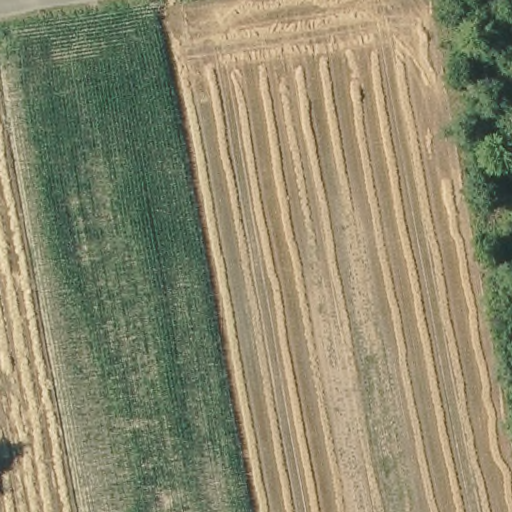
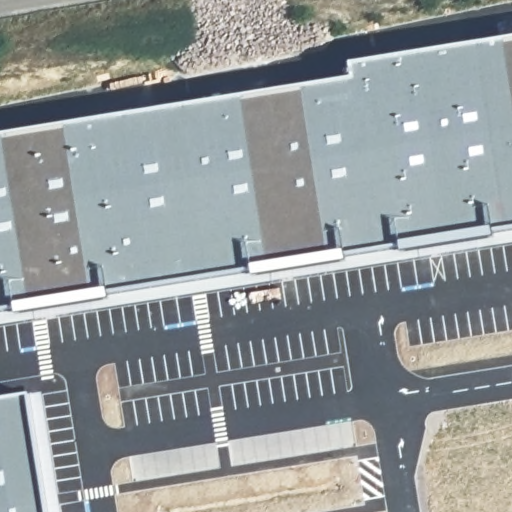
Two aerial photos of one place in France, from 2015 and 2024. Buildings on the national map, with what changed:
new [(352,76),(347,62),(512,35),(512,230),(0,310),(0,132),(352,76)]
new [(50,512),(0,512),(0,397),(32,391),(50,512)]

